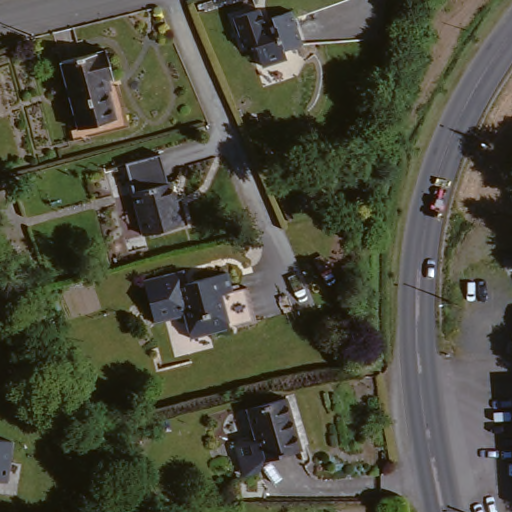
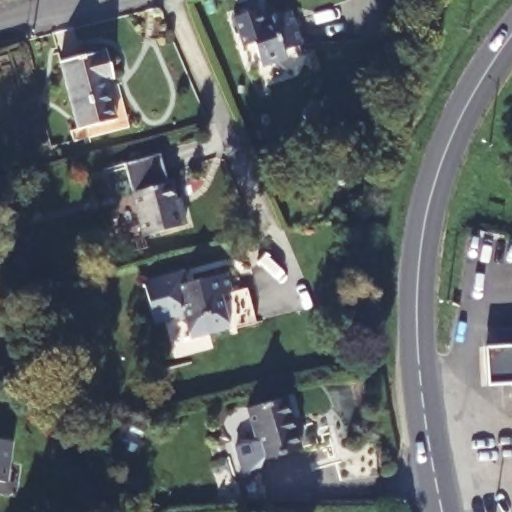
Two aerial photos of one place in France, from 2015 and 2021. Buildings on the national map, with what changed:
unchanged [(265,21),(285,13),(298,45),(280,53),(283,59),(258,69),(249,47),(240,51),(228,22),(252,11),(261,32),(268,29),(265,21)]
unchanged [(78,125),(59,65),(102,50),(124,120),(72,139),(69,128),(78,125)]
unchanged [(185,228),(141,240),(129,196),(166,186),(173,212),(180,210),(185,228)]
unchanged [(222,272),(230,298),(221,300),(231,338),(193,348),(184,313),(155,322),(144,282),(174,274),(185,271),(187,281),(187,282),(222,272)]
new [(487,386),(485,348),(512,346),(512,384),(487,386)]
unchanged [(247,408),(285,398),(296,448),(257,458),(247,408)]
unchanged [(6,483),(0,482),(0,440),(13,442),(6,483)]

